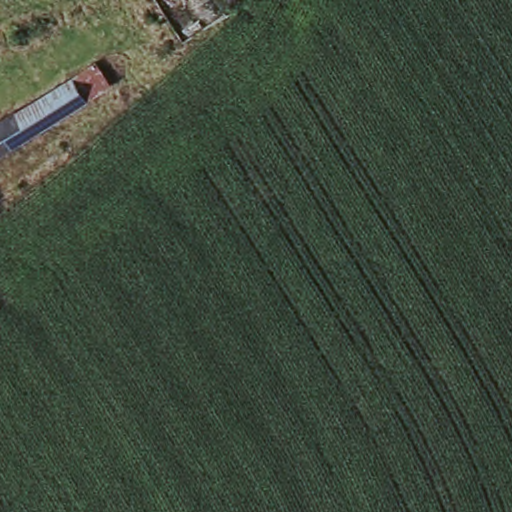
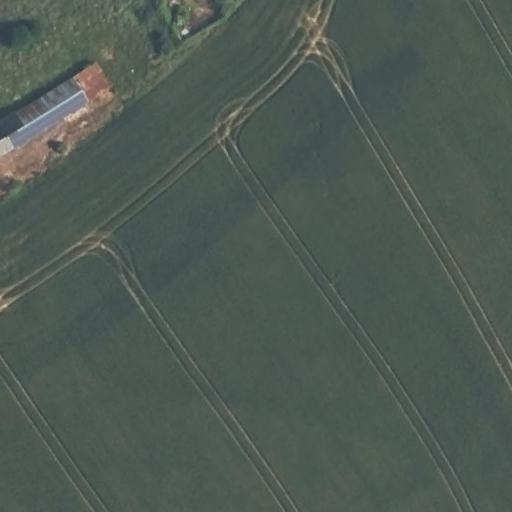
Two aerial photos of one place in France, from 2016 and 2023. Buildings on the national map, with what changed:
unchanged [(292,0),(304,8),(287,30),(269,16),(279,0),(292,0)]
unchanged [(93,61),(107,86),(84,101),(50,122),(0,153),(0,122),(69,78),(93,61)]

